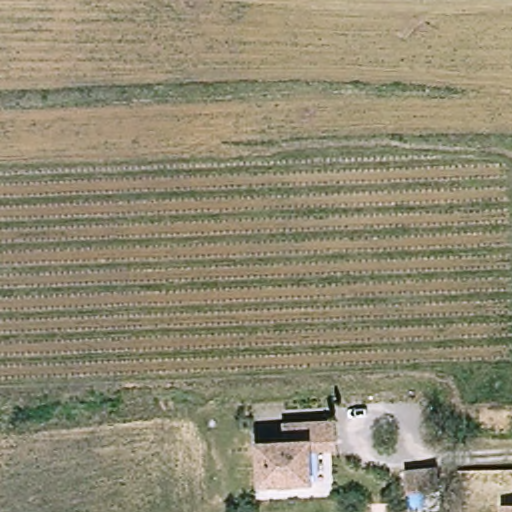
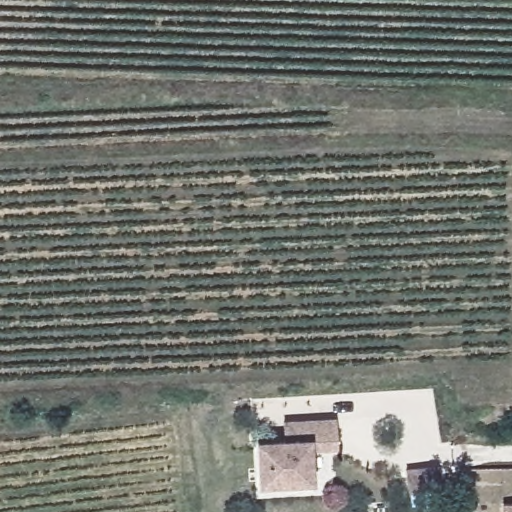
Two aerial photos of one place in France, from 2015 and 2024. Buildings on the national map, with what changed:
unchanged [(343,450),(318,451),(319,483),(267,484),(265,444),(293,442),(293,424),(341,422),(343,450)]
unchanged [(440,490),(408,493),(406,471),(439,468),(440,490)]
unchanged [(512,506),(512,512),(510,512),(510,506),(512,506)]

